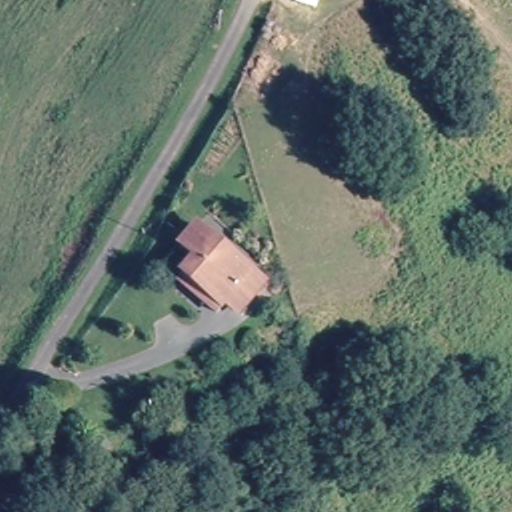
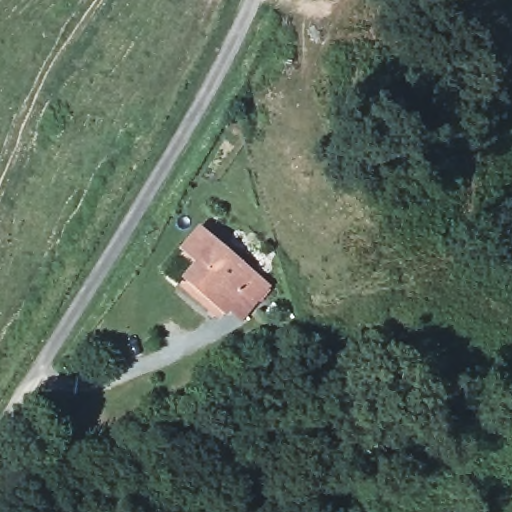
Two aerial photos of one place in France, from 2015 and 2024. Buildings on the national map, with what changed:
unchanged [(181,287),(188,278),(199,262),(184,251),(198,230),(272,287),(261,302),(255,297),(239,317),(226,308),(217,319),(181,287)]

